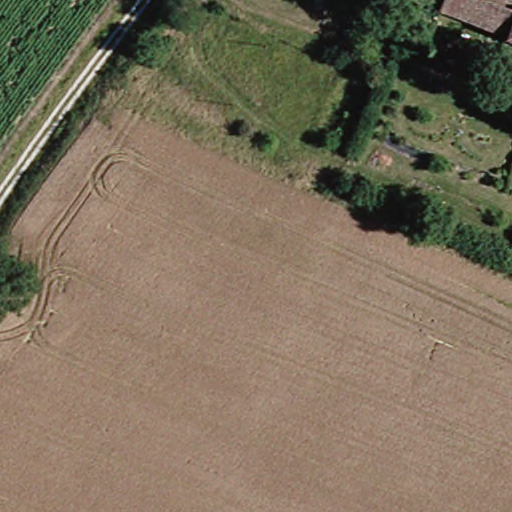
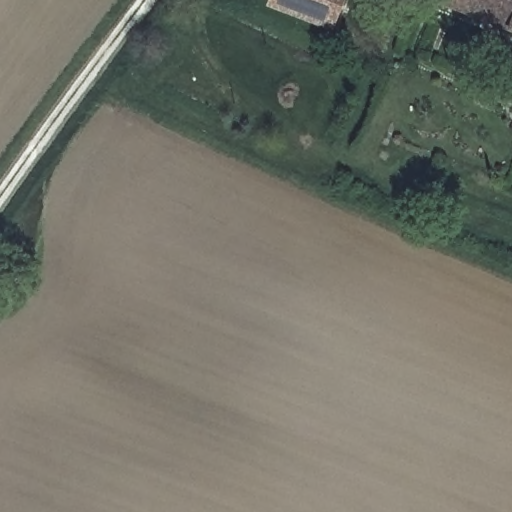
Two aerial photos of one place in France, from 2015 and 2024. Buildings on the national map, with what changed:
new [(268,0),(344,0),(332,32),(266,6),(268,0)]
unchanged [(454,1),(454,0),(512,0),(512,25),(454,1)]

